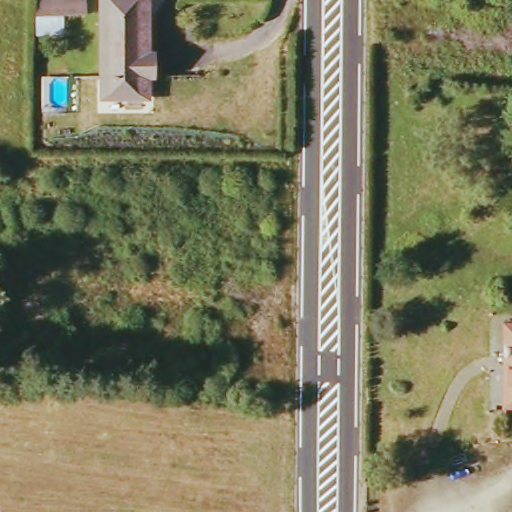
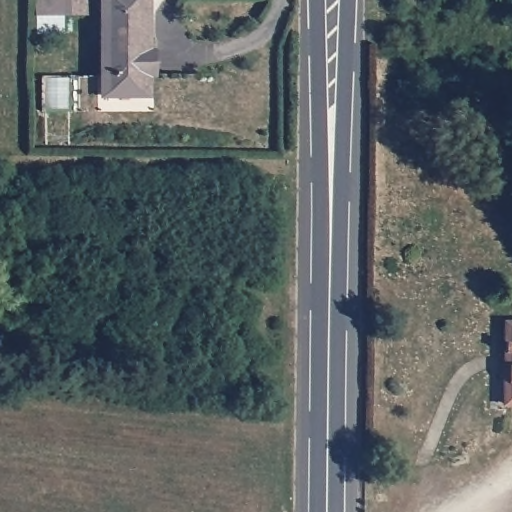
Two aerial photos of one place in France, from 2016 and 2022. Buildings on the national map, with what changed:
unchanged [(62,15),(63,34),(35,35),(34,15),(33,0),(88,0),(88,14),(62,15)]
unchanged [(154,50),(154,78),(148,79),(149,99),(98,99),(96,0),(148,0),(148,50),(154,50)]
unchanged [(56,321),(16,321),(15,261),(56,261),(56,321)]
unchanged [(512,339),(512,405),(510,404),(512,339)]

